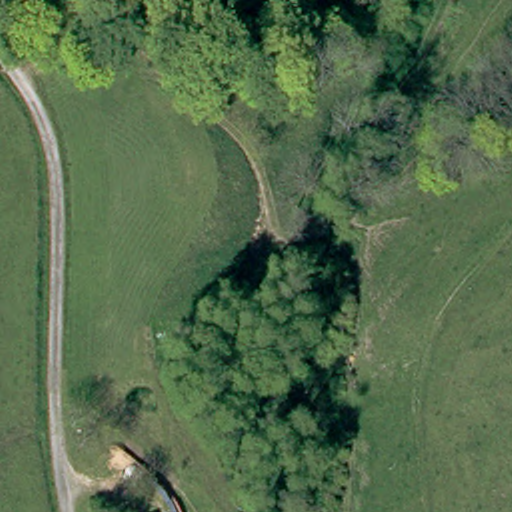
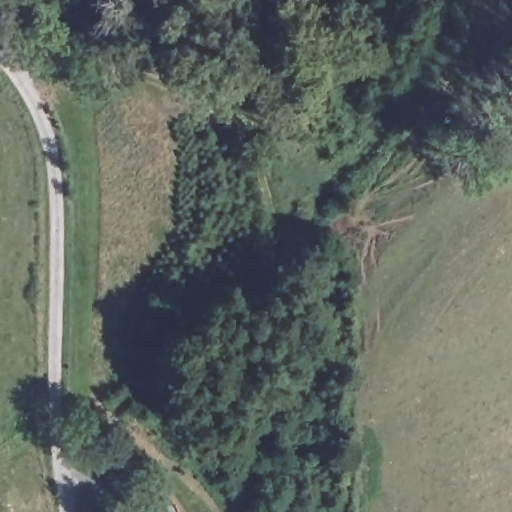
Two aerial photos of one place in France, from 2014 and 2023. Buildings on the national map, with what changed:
[]

